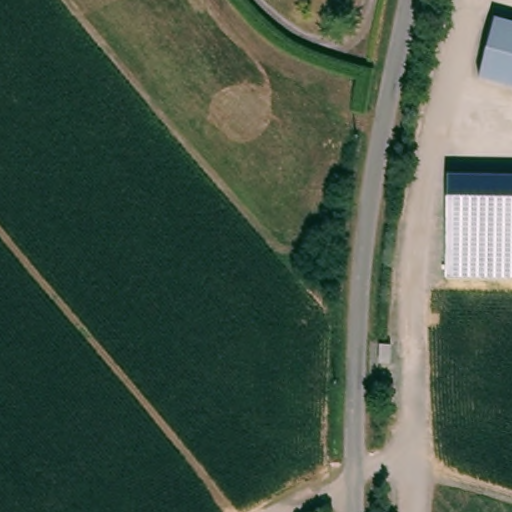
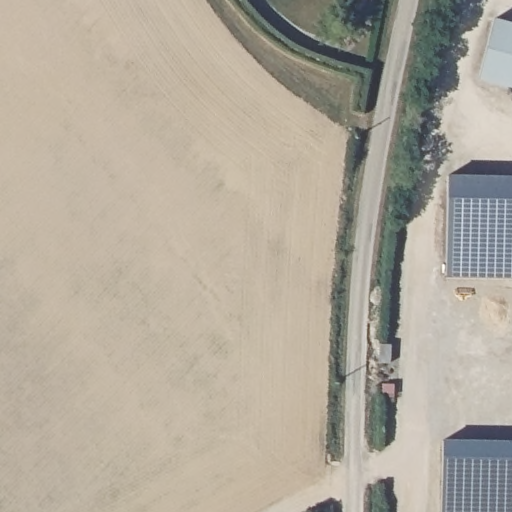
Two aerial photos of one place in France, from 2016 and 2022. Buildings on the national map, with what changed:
unchanged [(489,27),(512,31),(512,93),(478,87),(489,27)]
unchanged [(512,177),(512,280),(446,278),(448,176),(512,177)]
new [(512,456),(512,512),(435,512),(436,455),(512,456)]

